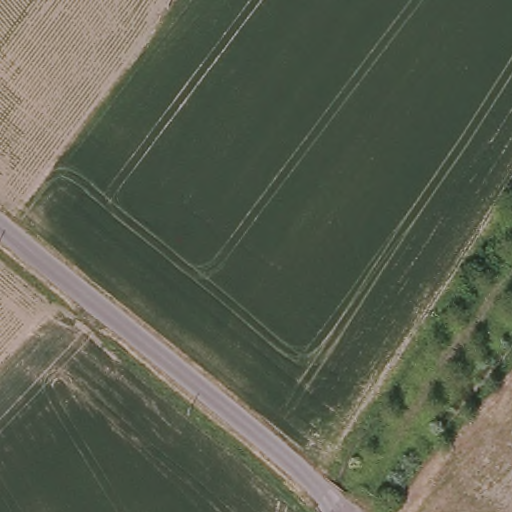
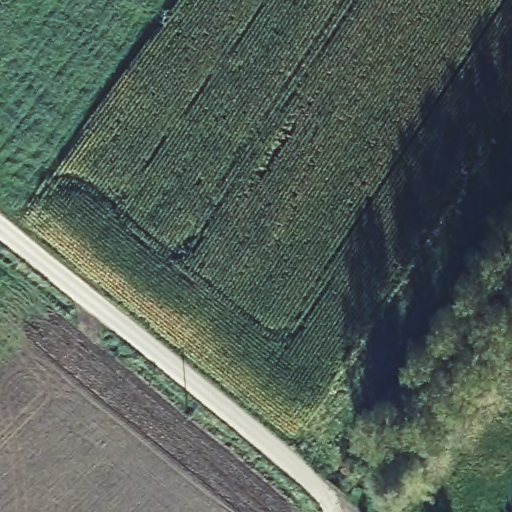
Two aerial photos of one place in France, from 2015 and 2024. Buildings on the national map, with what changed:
unchanged [(445,477),(423,487),(417,471),(440,463),(445,477)]

